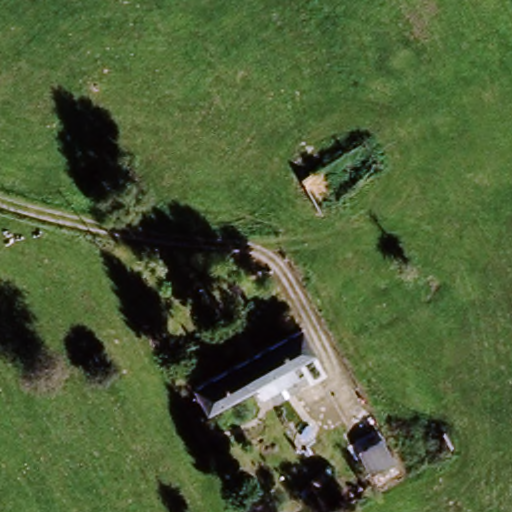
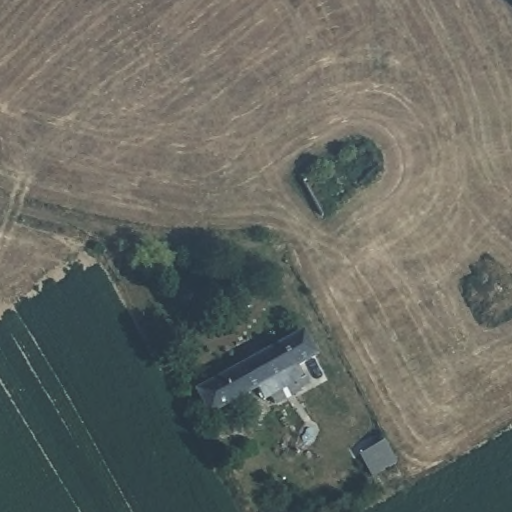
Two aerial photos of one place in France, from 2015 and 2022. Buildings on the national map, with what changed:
unchanged [(316,354),(292,368),(298,380),(260,399),(254,388),(210,414),(195,390),(303,329),(316,354)]
unchanged [(370,482),(356,456),(385,439),(400,465),(370,482)]

